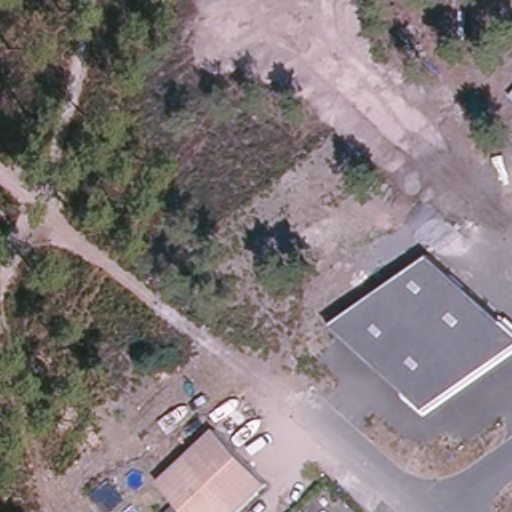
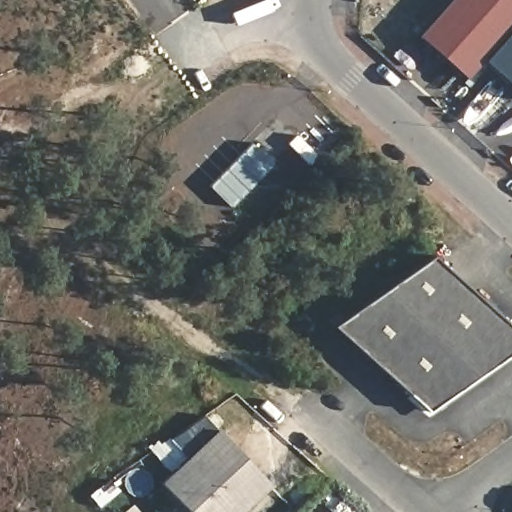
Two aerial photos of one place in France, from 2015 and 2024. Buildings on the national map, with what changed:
new [(467,79),(418,36),(449,0),(512,0),(512,87),(505,81),(483,61),(467,79)]
unchanged [(512,350),(422,414),(399,394),(403,391),(326,322),(405,267),(427,251),(502,318),(505,314),(512,320),(512,350)]
demolished [(248,430),(236,443),(198,406),(211,394),(248,430)]
unchanged [(161,486),(217,433),(268,487),(241,512),(185,512),(161,486)]

